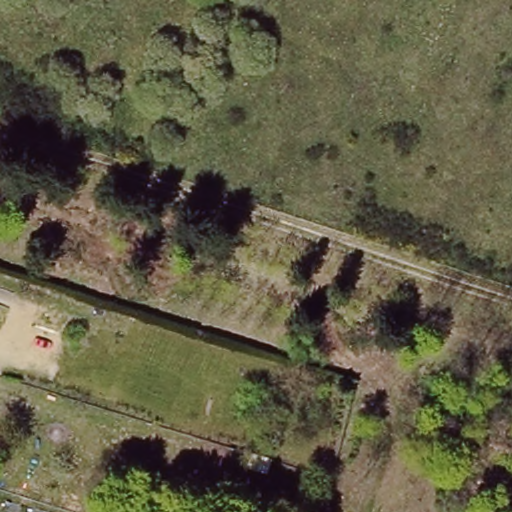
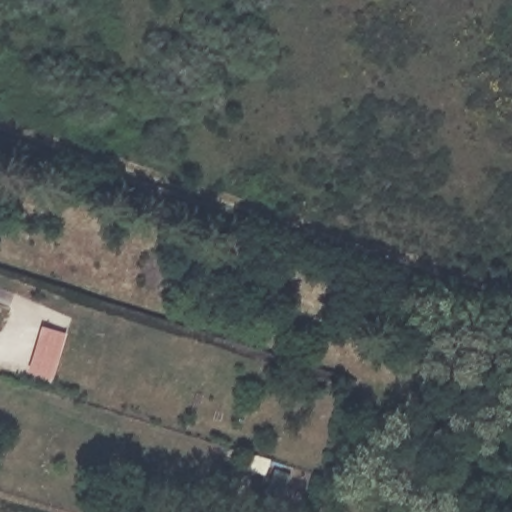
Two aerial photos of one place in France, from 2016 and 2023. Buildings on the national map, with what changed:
new [(45,328),(65,335),(51,379),(30,372),(45,328)]
demolished [(0,512),(0,502),(35,512),(0,512)]

